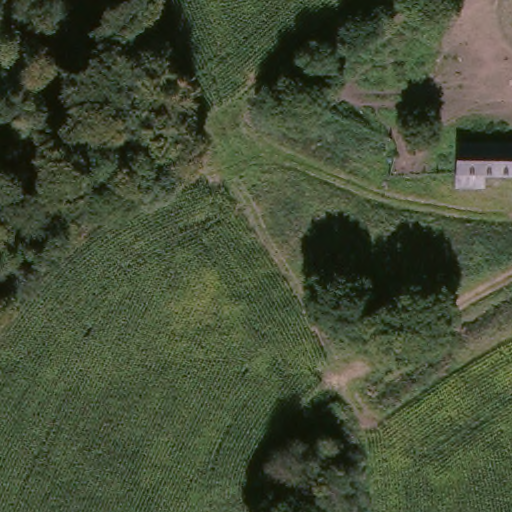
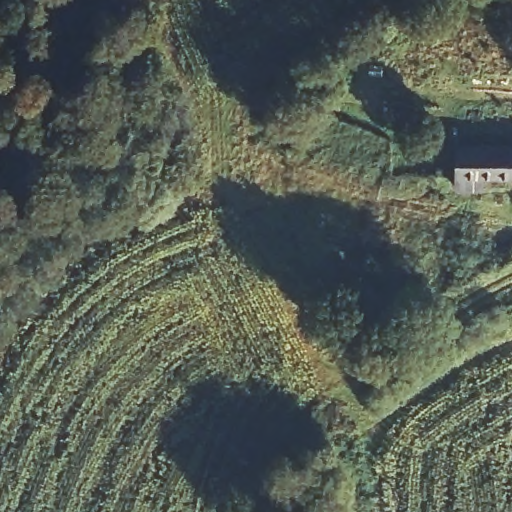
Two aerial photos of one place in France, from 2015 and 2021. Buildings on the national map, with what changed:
unchanged [(311,77),(324,98),(309,106),(297,86),(311,77)]
unchanged [(512,153),(512,187),(479,187),(479,198),(452,198),(452,153),(512,153)]

